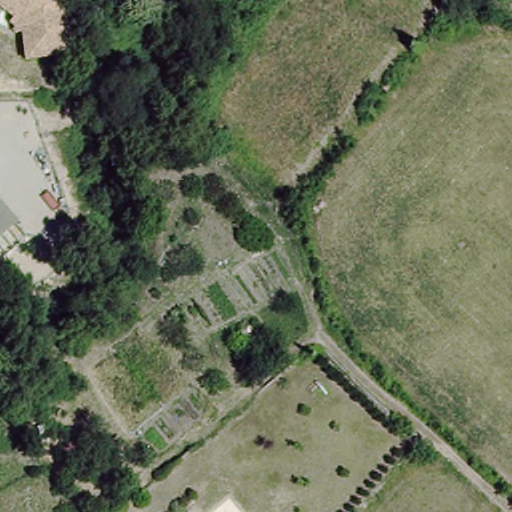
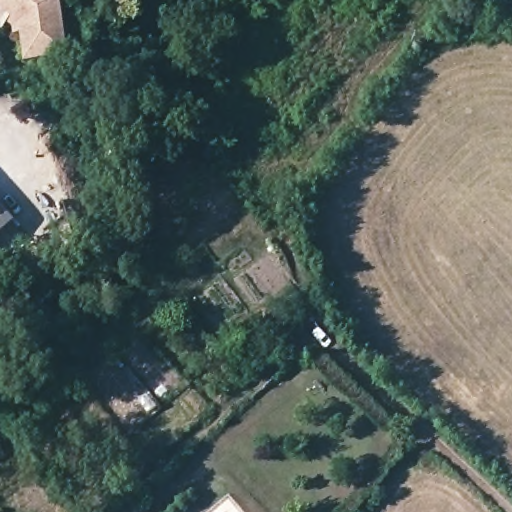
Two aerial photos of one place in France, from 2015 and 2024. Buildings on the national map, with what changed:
unchanged [(68,58),(27,59),(23,33),(15,33),(12,11),(0,3),(0,0),(63,0),(68,58)]
unchanged [(18,225),(0,241),(0,204),(18,225)]
unchanged [(115,512),(128,502),(139,512),(115,512)]

